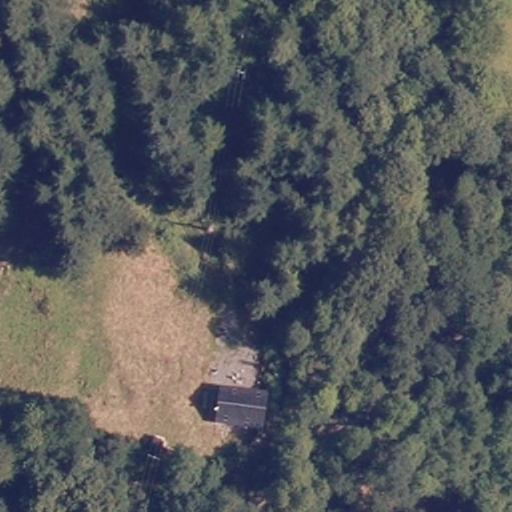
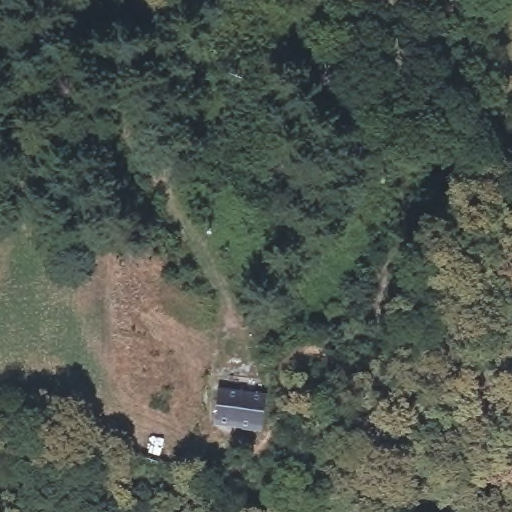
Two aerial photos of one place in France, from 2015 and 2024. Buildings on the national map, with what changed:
unchanged [(265,436),(218,429),(223,392),(272,400),(265,436)]

